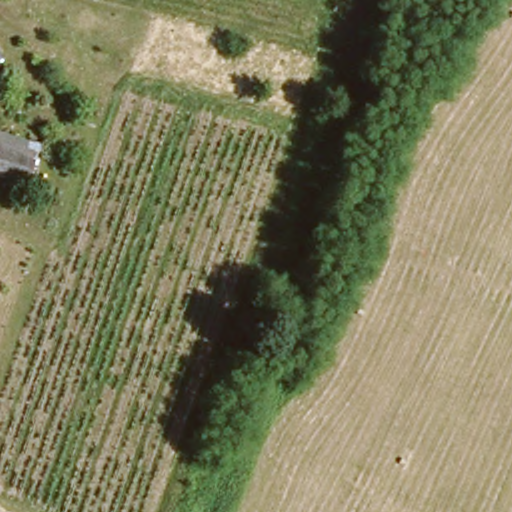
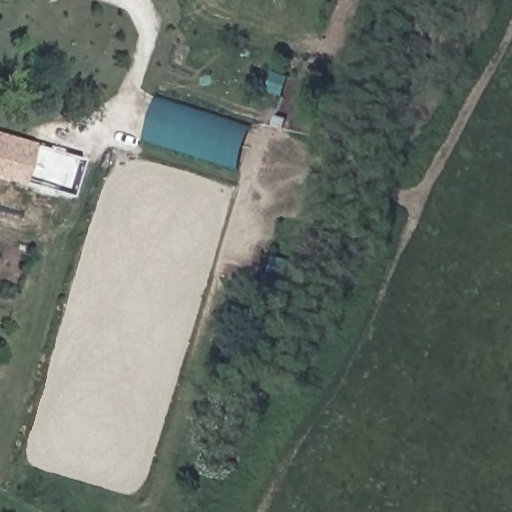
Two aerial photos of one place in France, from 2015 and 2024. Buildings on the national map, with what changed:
new [(145,139),(158,98),(252,128),(239,169),(145,139)]
unchanged [(27,145),(24,154),(53,161),(49,175),(64,179),(59,197),(0,181),(0,136),(27,145)]

